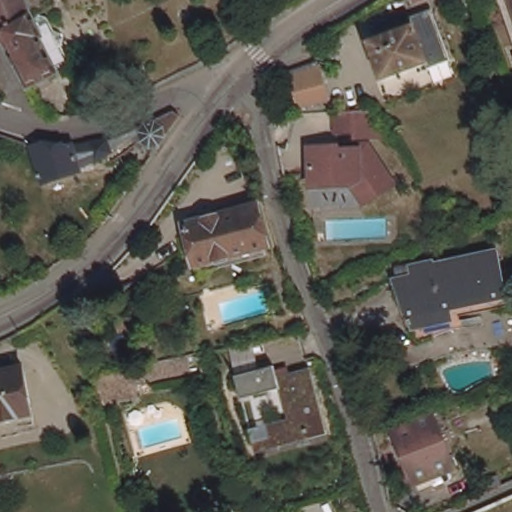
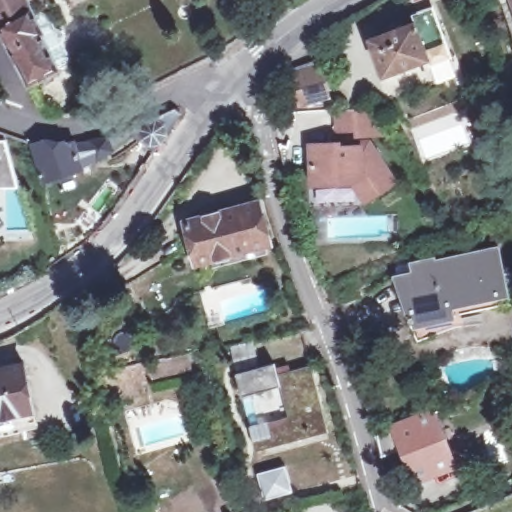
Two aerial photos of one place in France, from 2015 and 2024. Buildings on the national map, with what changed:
unchanged [(23,0),(0,13),(0,0),(23,0)]
unchanged [(29,0),(48,37),(44,39),(50,50),(58,46),(69,49),(74,60),(70,70),(61,75),(62,77),(33,91),(12,52),(0,26),(0,13),(23,0),(29,0)]
unchanged [(422,71),(419,65),(373,82),(361,47),(405,29),(402,22),(423,14),(443,62),(422,71)]
unchanged [(329,100),(292,109),(283,69),(319,60),(329,100)]
unchanged [(368,106),(384,129),(354,130),(354,124),(337,125),(336,105),(368,106)]
unchanged [(126,147),(89,169),(45,184),(35,149),(41,146),(62,150),(108,144),(178,112),(185,117),(156,156),(141,145),(136,141),(126,147)]
unchanged [(314,179),(313,140),(340,140),(359,139),(369,138),(395,177),(366,196),(354,177),(342,177),(314,179)]
new [(0,189),(0,140),(5,140),(18,189),(0,189)]
unchanged [(267,208),(276,239),(201,260),(190,217),(245,203),(248,213),(267,208)]
unchanged [(455,303),(456,311),(412,321),(395,275),(416,269),(414,260),(435,254),(436,258),(498,244),(509,290),(455,303)]
unchanged [(235,398),(231,369),(275,361),(280,390),(235,398)]
unchanged [(29,362),(39,410),(0,416),(0,367),(29,362)]
unchanged [(402,442),(403,442),(396,424),(431,410),(452,461),(416,477),(402,442)]

